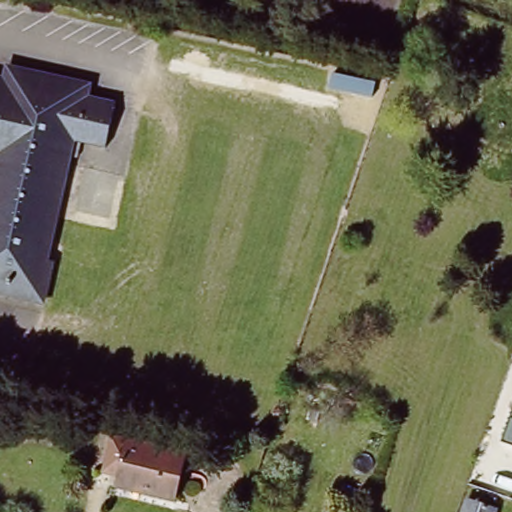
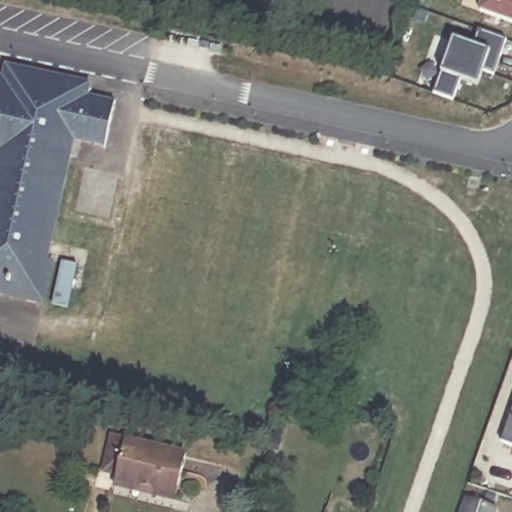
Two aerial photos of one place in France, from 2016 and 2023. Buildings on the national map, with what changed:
new [(483,0),(512,0),(512,23),(479,12),(483,0)]
new [(497,73),(484,70),(478,85),(460,79),(453,100),(434,94),(441,71),(454,39),(474,45),(477,30),(506,40),(497,73)]
unchanged [(77,140),(52,256),(59,260),(46,306),(0,296),(0,68),(2,55),(92,75),(90,90),(120,99),(107,145),(77,140)]
new [(502,441),(512,411),(512,445),(502,441)]
unchanged [(179,493),(157,488),(158,483),(122,475),(124,467),(109,464),(116,430),(132,434),(189,447),(179,493)]
unchanged [(492,512),(461,512),(467,495),(494,505),(492,512)]

